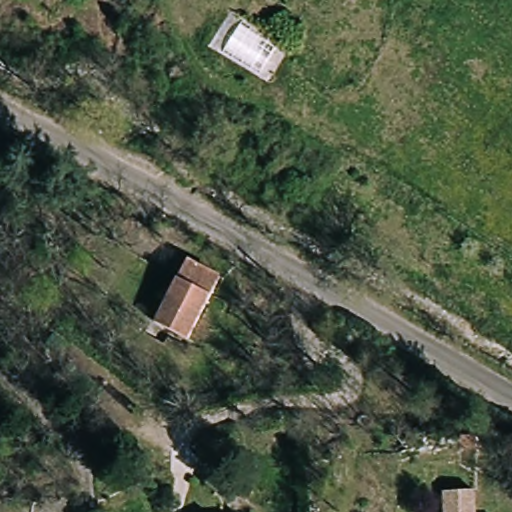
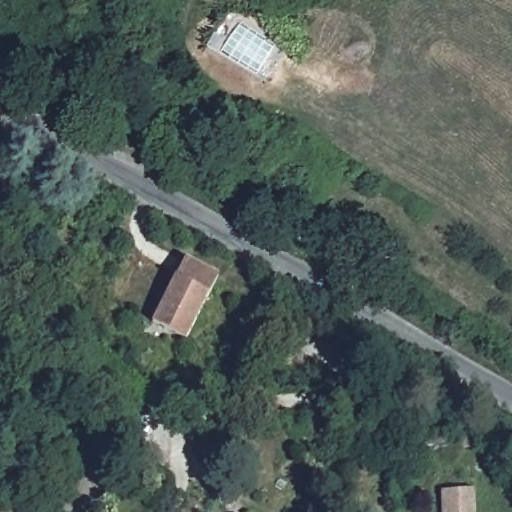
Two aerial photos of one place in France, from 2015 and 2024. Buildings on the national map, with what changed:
unchanged [(160,318),(191,259),(228,278),(195,336),(160,318)]
unchanged [(485,485),(486,466),(498,468),(497,486),(485,485)]
unchanged [(445,493),(477,491),(478,512),(446,512),(445,493)]

